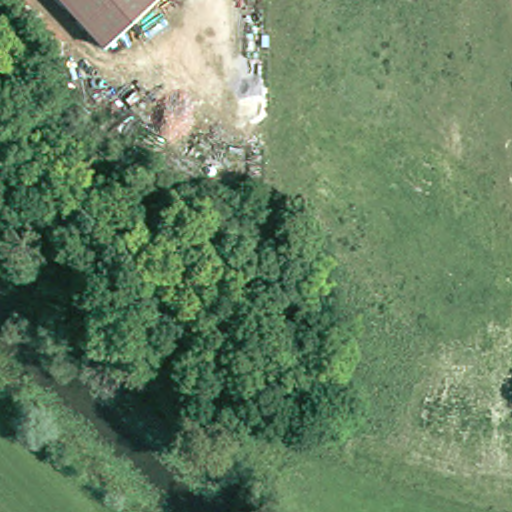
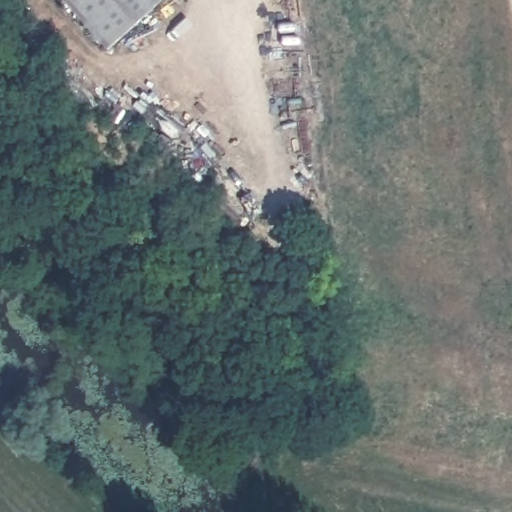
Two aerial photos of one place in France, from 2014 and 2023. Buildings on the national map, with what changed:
unchanged [(67,0),(154,0),(105,44),(67,0)]

